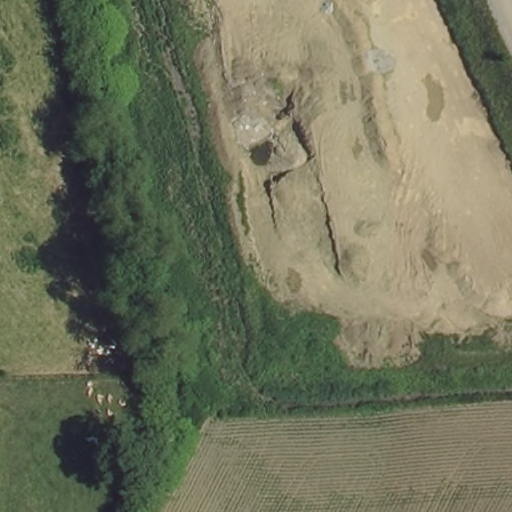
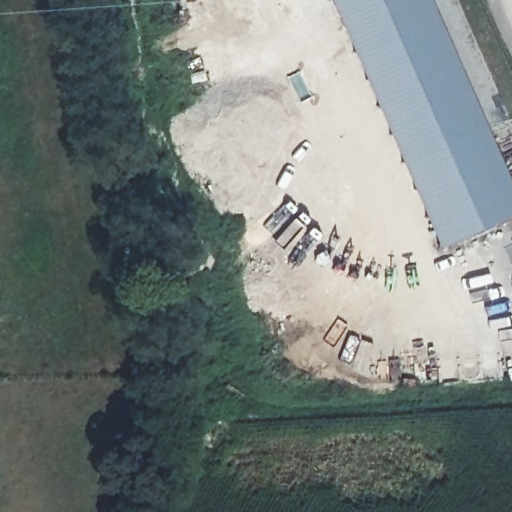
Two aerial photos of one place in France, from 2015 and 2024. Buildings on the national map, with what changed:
new [(429,0),(512,188),(512,212),(435,246),(330,0),(429,0)]

